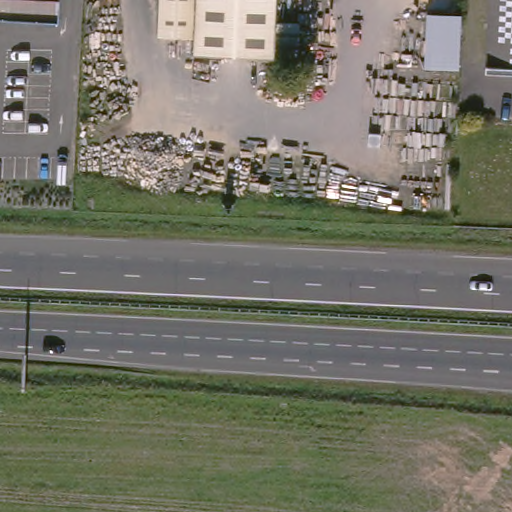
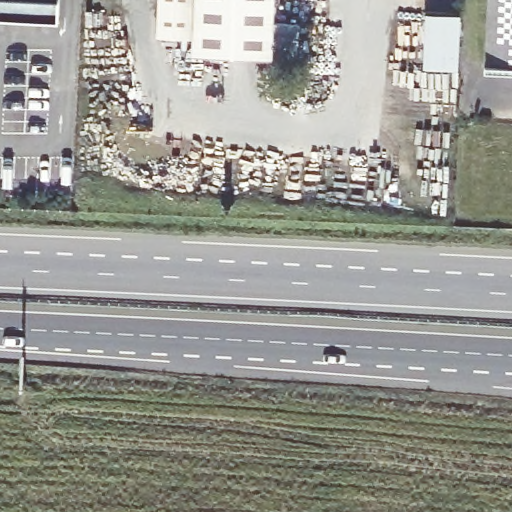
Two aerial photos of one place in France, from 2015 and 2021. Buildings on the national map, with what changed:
unchanged [(0,17),(0,0),(59,0),(58,19),(0,17)]
unchanged [(287,18),(288,11),(267,11),(266,26),(291,27),(289,59),(188,54),(188,39),(153,37),(156,0),(288,0),(313,1),(312,19),(287,18)]
unchanged [(489,71),(491,0),(512,0),(512,72),(489,71)]
unchanged [(433,16),(458,18),(456,67),(430,67),(433,16)]

